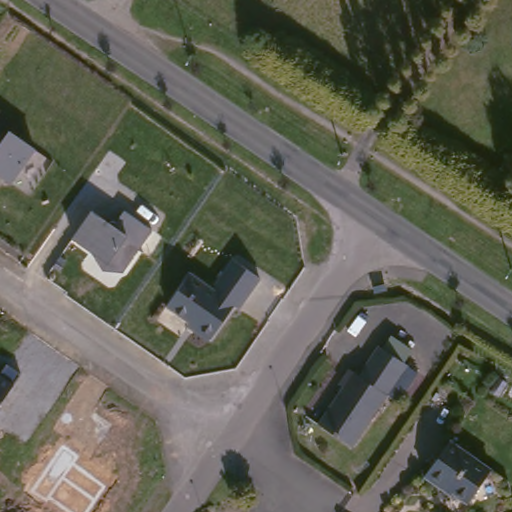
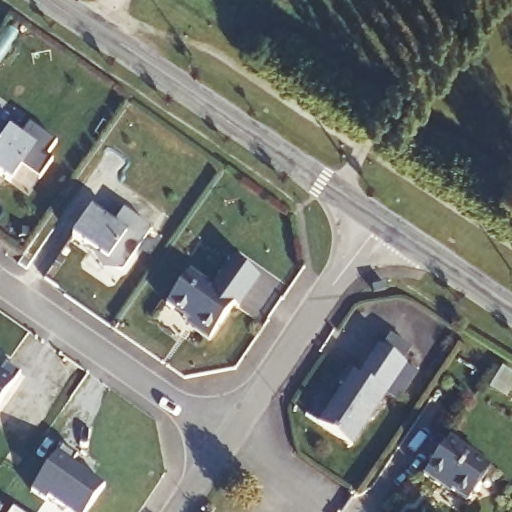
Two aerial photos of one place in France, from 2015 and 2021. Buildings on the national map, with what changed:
unchanged [(2,142),(16,118),(45,140),(10,183),(0,175),(0,140),(2,142)]
unchanged [(151,230),(121,272),(72,238),(91,211),(113,226),(124,210),(151,230)]
unchanged [(213,289),(233,260),(260,278),(238,309),(234,306),(210,341),(195,330),(197,327),(167,306),(190,273),(213,289)]
unchanged [(391,336),(411,350),(403,362),(406,365),(417,372),(397,402),(386,395),(351,446),(319,425),(344,387),(339,385),(349,370),(359,376),(379,346),(382,348),(391,336)]
unchanged [(1,375),(7,366),(20,375),(13,383),(0,403),(0,373),(1,375)]
unchanged [(490,468),(466,503),(441,485),(439,488),(423,477),(449,440),(490,468)]
new [(72,463),(105,486),(88,512),(69,512),(49,497),(45,501),(30,490),(62,446),(77,456),(72,463)]

